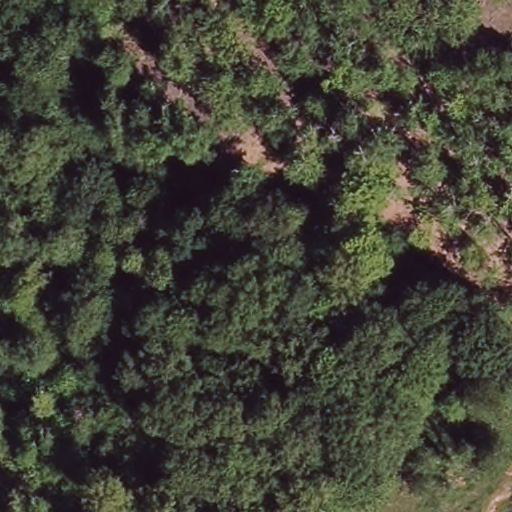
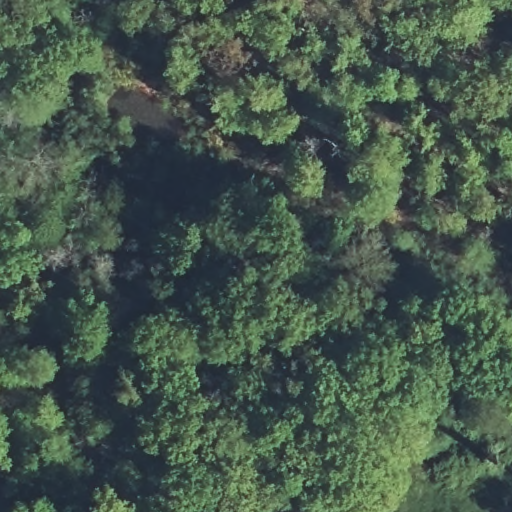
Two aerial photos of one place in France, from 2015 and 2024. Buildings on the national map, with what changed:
unchanged [(314,501),(322,491),(335,501),(327,512),(314,501)]

